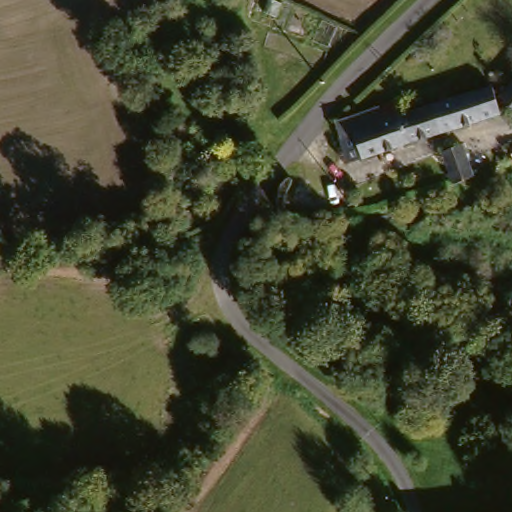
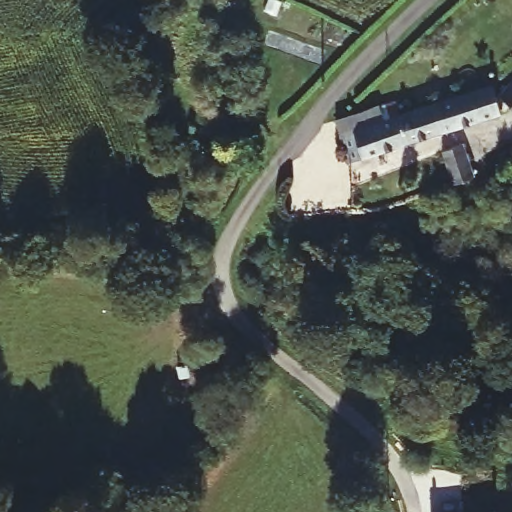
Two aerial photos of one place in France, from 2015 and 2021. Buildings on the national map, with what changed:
unchanged [(509,117),(496,105),(512,85),(512,119),(509,117)]
unchanged [(493,123),(351,167),(333,121),(391,102),(400,120),(483,94),(493,123)]
unchanged [(218,137),(203,144),(196,127),(211,122),(218,137)]
unchanged [(506,145),(512,143),(512,163),(511,163),(506,145)]
unchanged [(449,184),(438,157),(454,148),(468,177),(449,184)]
unchanged [(155,227),(171,226),(173,243),(153,244),(155,227)]

